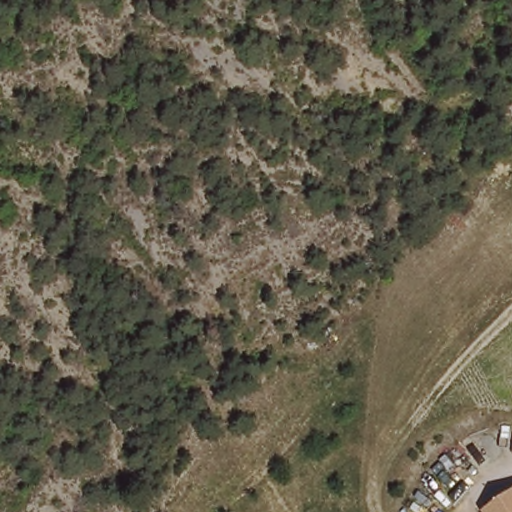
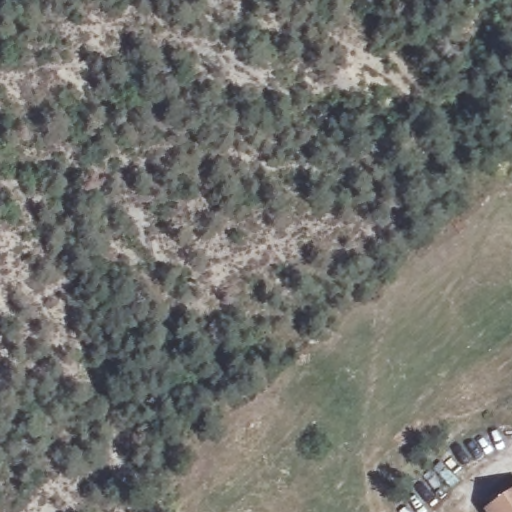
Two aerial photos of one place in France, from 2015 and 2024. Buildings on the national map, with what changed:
unchanged [(512,495),(512,512),(491,512),(490,511),(512,495)]

